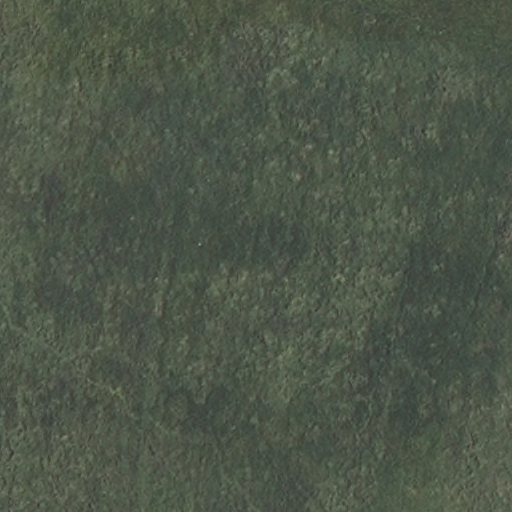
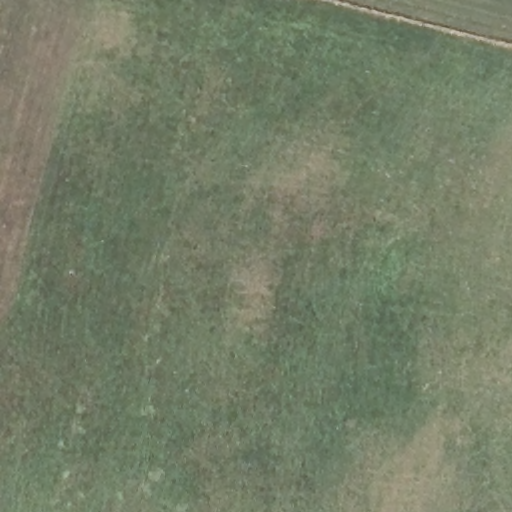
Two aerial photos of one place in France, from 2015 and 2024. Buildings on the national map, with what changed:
[]

